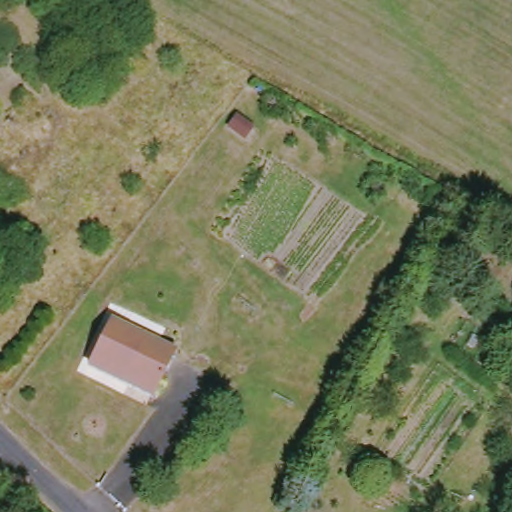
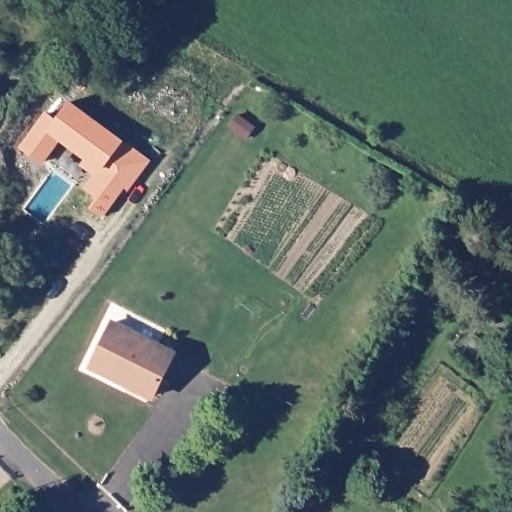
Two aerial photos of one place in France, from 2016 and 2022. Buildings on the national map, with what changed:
new [(43,166),(18,147),(44,111),(54,119),(69,99),(122,139),(151,160),(130,188),(127,186),(103,218),(89,208),(95,198),(82,189),(92,175),(79,164),(84,157),(60,140),(43,166)]
unchanged [(232,116),(247,129),(238,140),(222,128),(232,116)]
unchanged [(97,366),(118,323),(176,352),(154,396),(97,366)]

